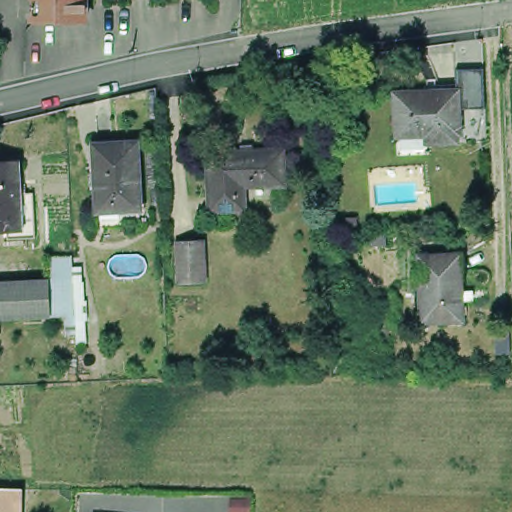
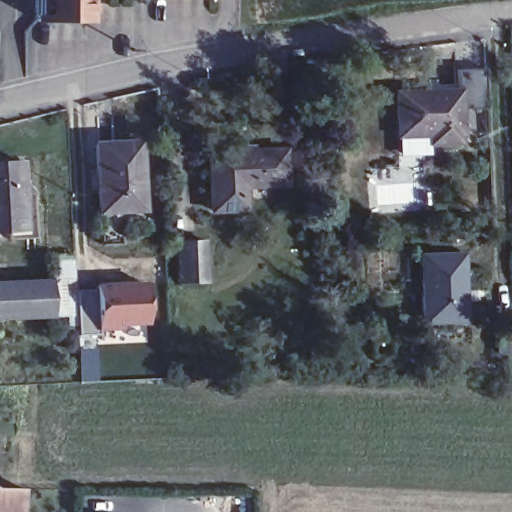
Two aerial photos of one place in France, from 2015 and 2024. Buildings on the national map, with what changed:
unchanged [(34,29),(32,0),(85,0),(87,26),(34,29)]
unchanged [(454,94),(455,134),(454,138),(453,145),(422,146),(421,136),(390,136),(388,97),(454,94)]
unchanged [(132,141),(137,208),(92,210),(89,143),(132,141)]
unchanged [(210,213),(207,156),(241,155),(242,148),(245,148),(254,148),(254,155),(282,154),(284,188),(247,189),(244,189),(244,212),(210,213)]
unchanged [(25,237),(0,238),(0,160),(8,160),(10,196),(23,196),(25,237)]
unchanged [(202,239),(204,280),(179,281),(177,240),(202,239)]
unchanged [(456,255),(459,324),(415,325),(414,255),(456,255)]
unchanged [(25,320),(0,321),(0,285),(24,284),(22,261),(45,260),(47,282),(47,302),(48,319),(25,320)]
new [(151,282),(155,332),(100,332),(96,287),(151,282)]
unchanged [(22,491),(24,512),(0,512),(0,489),(22,491)]

